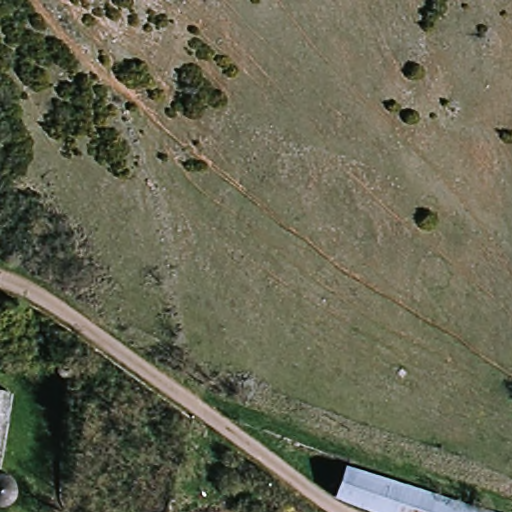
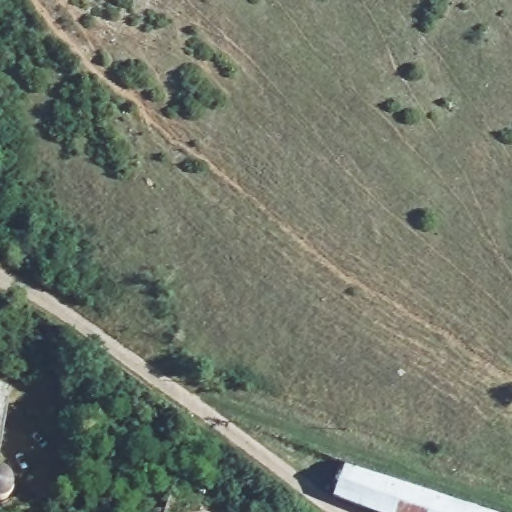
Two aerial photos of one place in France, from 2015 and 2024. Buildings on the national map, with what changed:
unchanged [(333,496),(341,463),(479,512),(373,512),(333,496)]
unchanged [(0,501),(0,490),(4,500),(0,501)]

